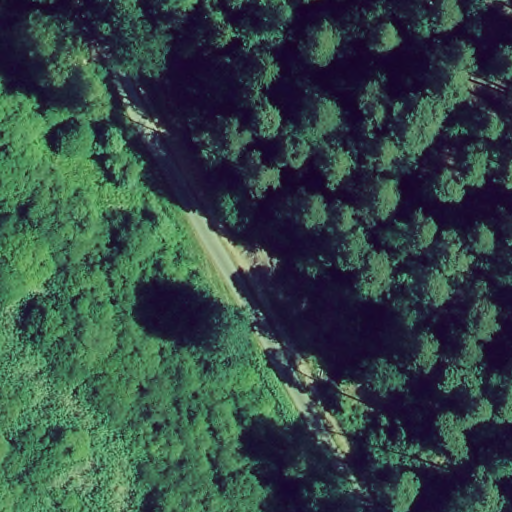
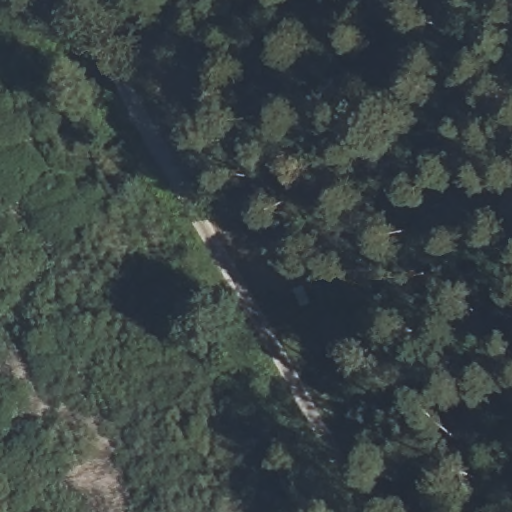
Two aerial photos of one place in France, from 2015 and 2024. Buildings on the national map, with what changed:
[]

